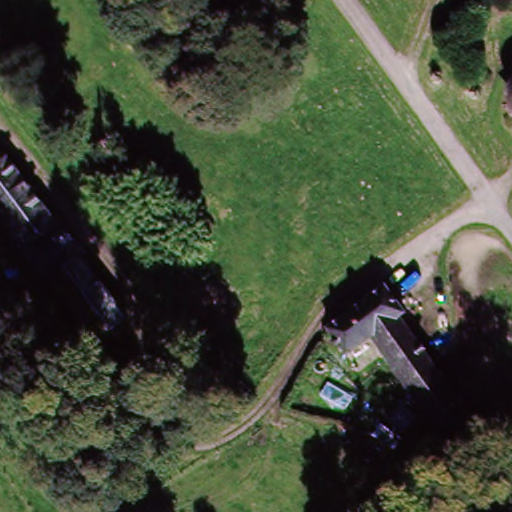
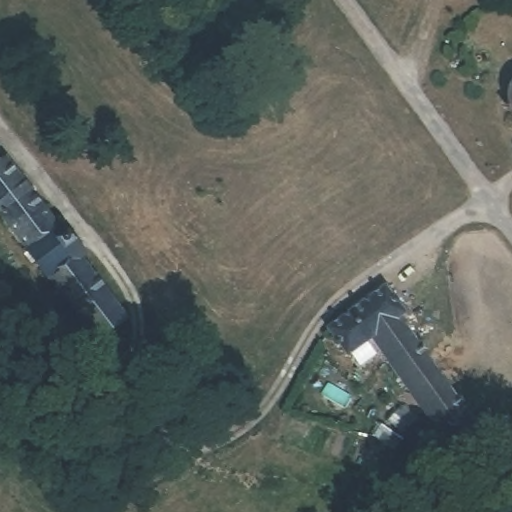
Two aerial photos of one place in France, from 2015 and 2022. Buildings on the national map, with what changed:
unchanged [(502,106),(499,96),(500,85),(507,76),(512,73),(512,114),(508,112),(502,106)]
unchanged [(137,318),(104,346),(0,220),(0,178),(12,169),(137,318)]
unchanged [(392,277),(413,306),(403,314),(443,364),(494,429),(473,446),(461,457),(429,420),(422,426),(393,392),(407,380),(381,347),(368,357),(339,321),(392,277)]

